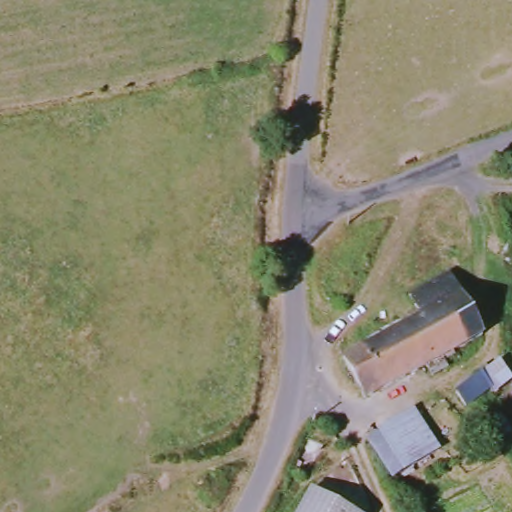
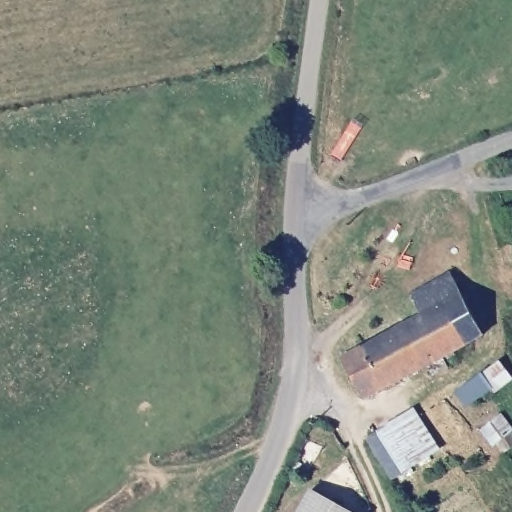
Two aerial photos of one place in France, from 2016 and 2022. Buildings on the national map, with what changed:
unchanged [(408,301),(450,279),(480,341),(422,370),(428,382),(412,390),(406,379),(362,404),(341,365),(420,323),(408,301)]
unchanged [(508,379),(467,407),(458,393),(499,365),(508,379)]
unchanged [(512,416),(512,439),(497,452),(481,432),(507,410),(512,416)]
unchanged [(433,451),(392,477),(370,440),(412,412),(433,451)]
unchanged [(315,492),(353,512),(305,512),(315,492)]

